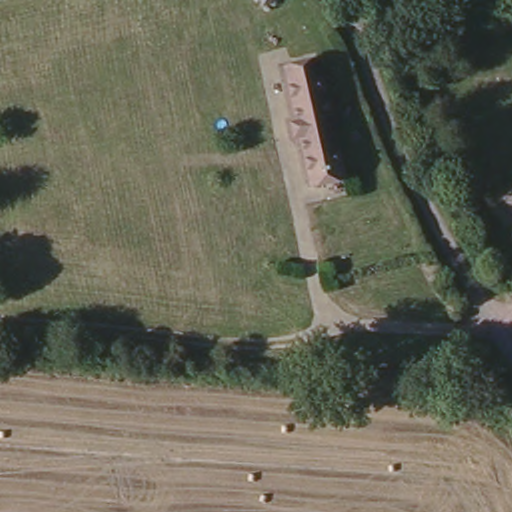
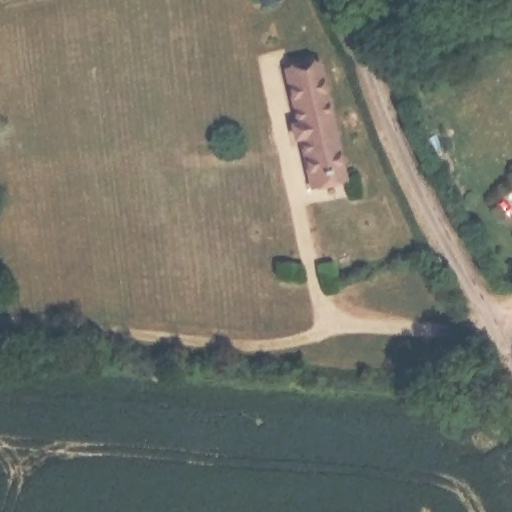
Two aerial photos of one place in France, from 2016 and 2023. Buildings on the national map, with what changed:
unchanged [(323,61),(351,180),(323,188),(314,139),(307,141),(304,124),(308,122),(295,66),(323,61)]

